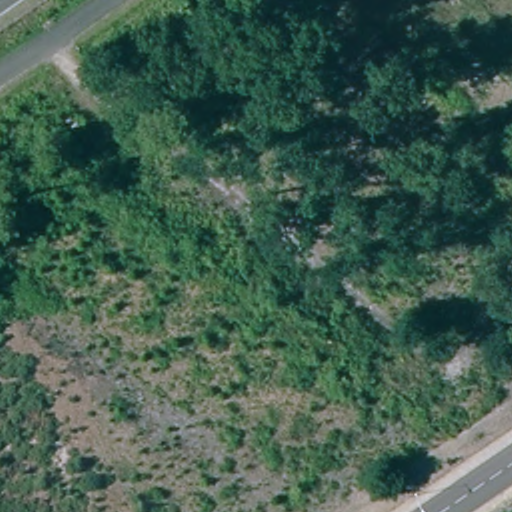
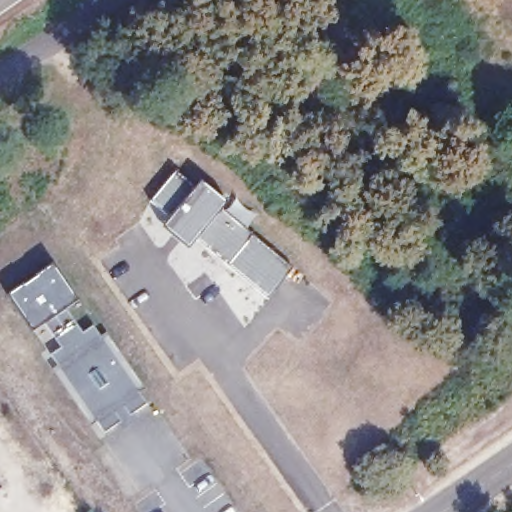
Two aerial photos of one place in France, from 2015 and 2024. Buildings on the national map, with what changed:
demolished [(512,37),(473,0),(512,0),(512,37)]
demolished [(512,57),(512,82),(499,70),(512,57)]
new [(291,267),(267,297),(228,265),(196,237),(188,249),(163,229),(171,217),(150,200),(175,171),(195,187),(199,181),(225,203),(220,209),(251,235),(291,267)]
new [(32,332),(7,295),(53,264),(78,301),(66,309),(46,323),(32,332)]
new [(51,356),(61,350),(46,323),(66,309),(82,332),(93,325),(100,337),(106,332),(143,387),(138,391),(146,404),(103,433),(96,420),(90,425),(52,368),(57,365),(51,356)]
unchanged [(3,485),(0,488),(0,480),(3,485)]

